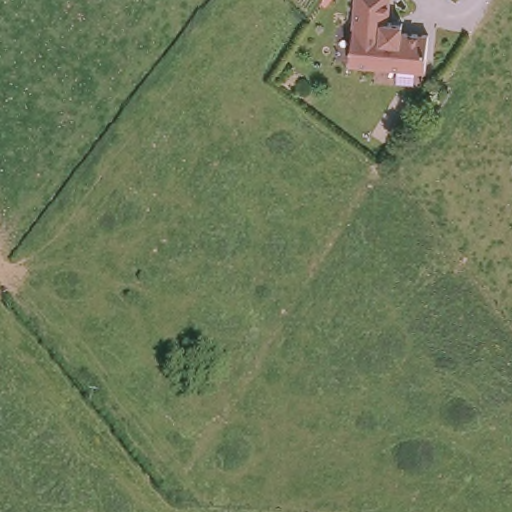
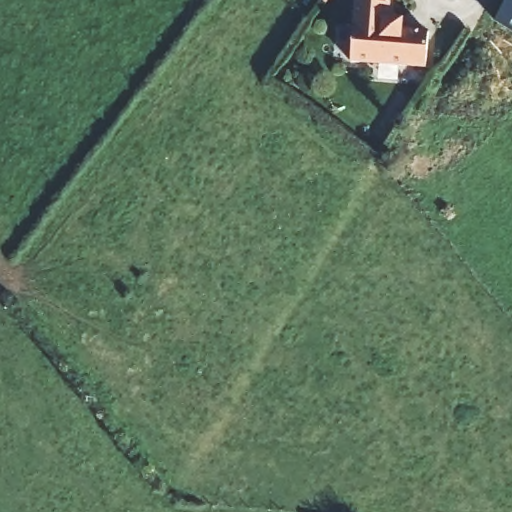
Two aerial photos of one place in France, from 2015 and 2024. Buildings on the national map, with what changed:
unchanged [(392,13),(403,13),(403,23),(430,24),(427,59),(353,54),(357,0),(390,0),(390,12),(392,13)]
new [(509,0),(512,0),(512,33),(495,23),(509,0)]

